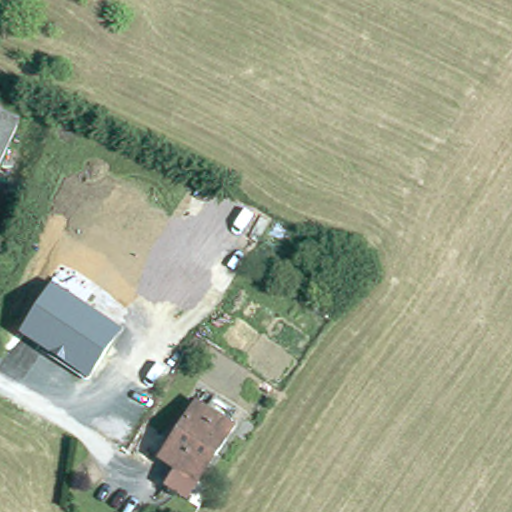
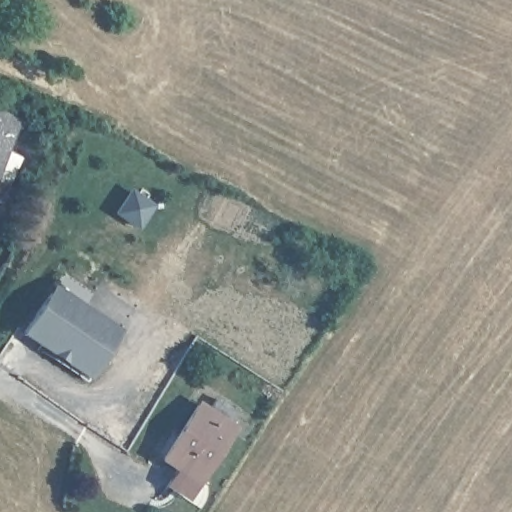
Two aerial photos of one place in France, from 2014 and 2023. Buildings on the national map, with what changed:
unchanged [(20,119),(0,166),(0,109),(20,119)]
unchanged [(13,189),(0,218),(0,183),(13,189)]
new [(129,189),(155,205),(138,230),(113,214),(129,189)]
unchanged [(52,282),(122,327),(88,380),(20,335),(52,282)]
unchanged [(171,443),(179,431),(184,434),(202,405),(213,411),(221,399),(242,412),(234,425),(237,428),(203,480),(168,458),(176,446),(171,443)]

